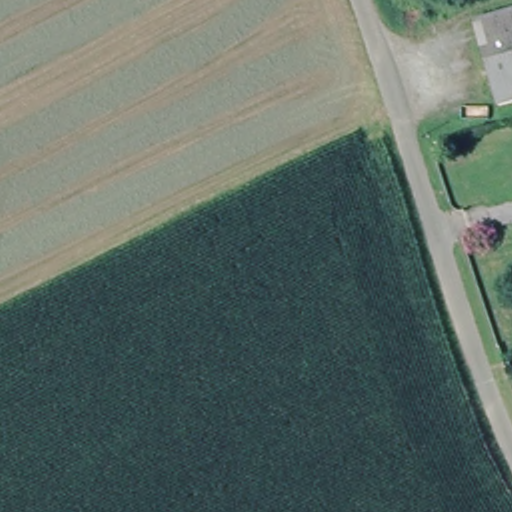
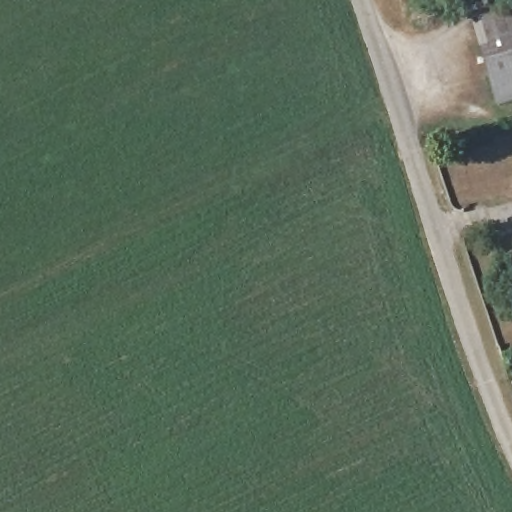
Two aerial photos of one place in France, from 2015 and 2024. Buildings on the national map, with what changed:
unchanged [(512,10),(512,102),(499,105),(475,21),(512,10)]

